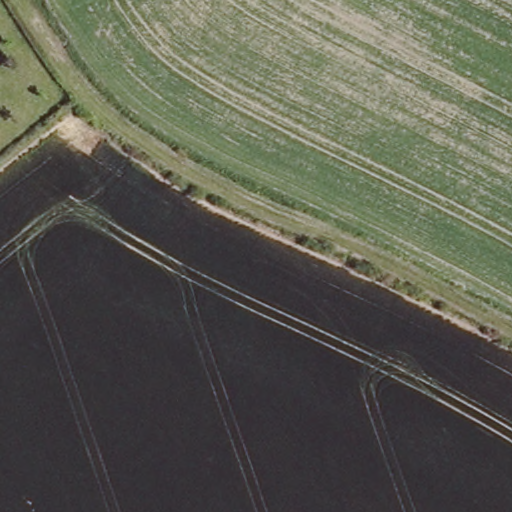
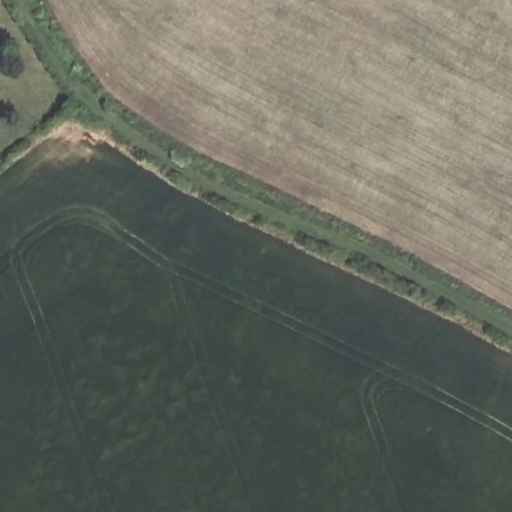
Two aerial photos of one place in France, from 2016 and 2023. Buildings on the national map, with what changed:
[]

